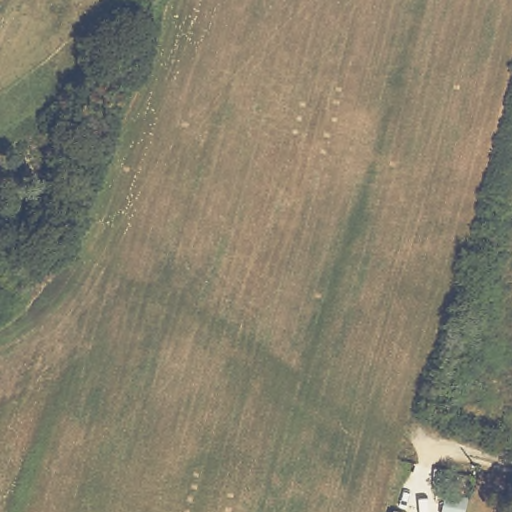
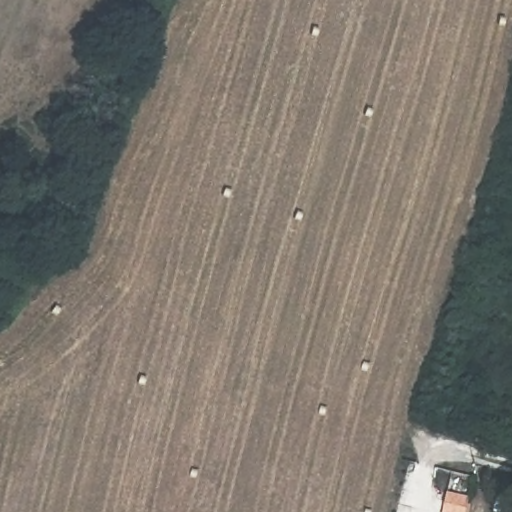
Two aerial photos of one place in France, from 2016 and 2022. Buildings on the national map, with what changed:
[]

